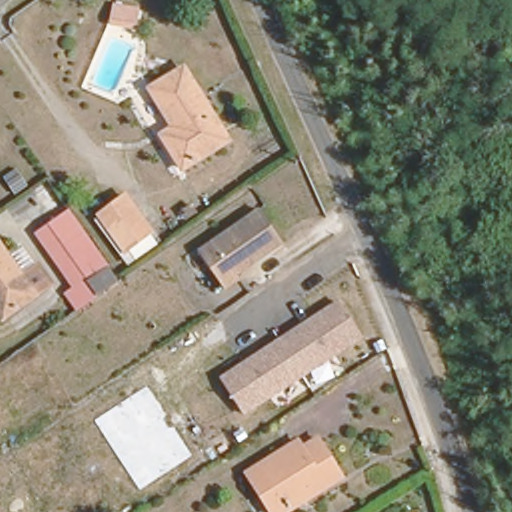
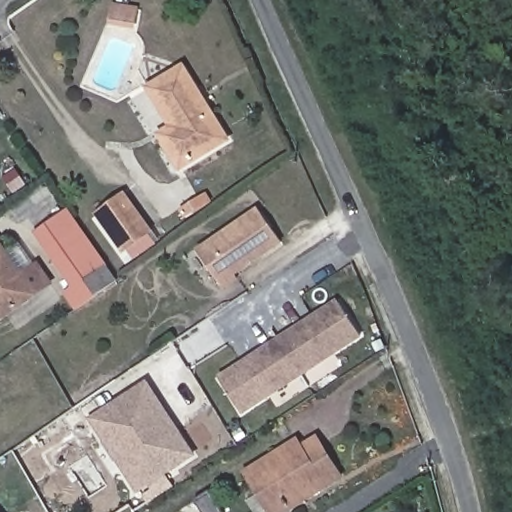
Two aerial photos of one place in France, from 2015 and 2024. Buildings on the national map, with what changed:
unchanged [(135,24),(111,21),(110,1),(138,5),(135,24)]
unchanged [(227,136),(180,163),(161,127),(171,121),(150,82),(186,62),(227,136)]
unchanged [(151,234),(125,251),(100,214),(125,196),(151,234)]
unchanged [(76,304),(67,290),(76,283),(48,245),(35,228),(68,207),(81,225),(116,280),(76,304)]
unchanged [(235,279),(237,282),(223,292),(198,256),(259,214),(281,246),(235,279)]
unchanged [(0,296),(0,240),(5,236),(44,288),(15,308),(11,311),(0,296)]
unchanged [(337,298),(362,337),(245,415),(220,376),(337,298)]
new [(148,382),(196,457),(137,493),(88,419),(148,382)]
unchanged [(250,470),(299,439),(304,449),(319,439),(341,476),(311,494),(308,488),(273,510),(255,480),(250,470)]
unchanged [(1,512),(0,512),(0,511),(1,512)]

